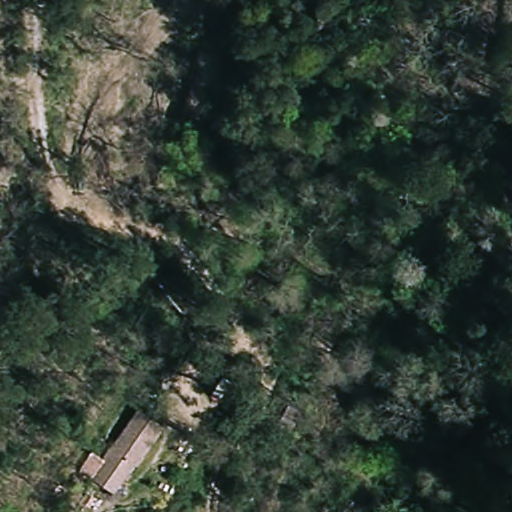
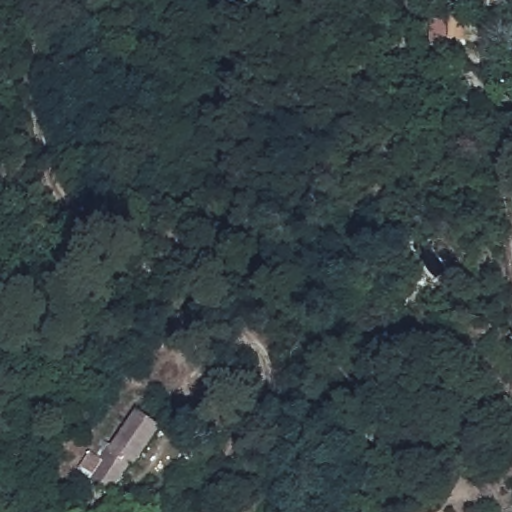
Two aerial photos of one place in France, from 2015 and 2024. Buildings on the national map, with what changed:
unchanged [(82,473),(95,450),(105,458),(140,412),(167,428),(115,501),(82,473)]

